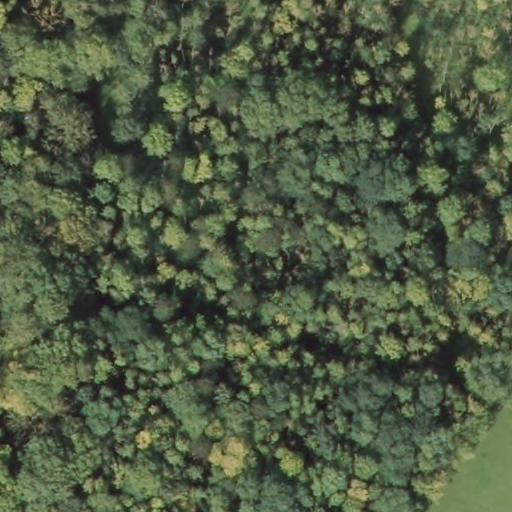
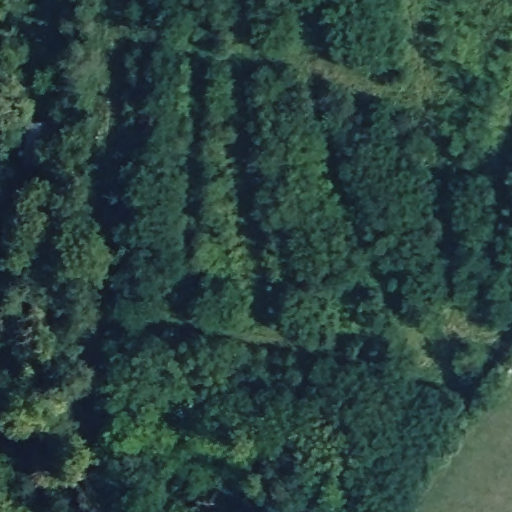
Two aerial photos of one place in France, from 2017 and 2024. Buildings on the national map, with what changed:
unchanged [(47,121),(44,161),(23,160),(27,120),(47,121)]

